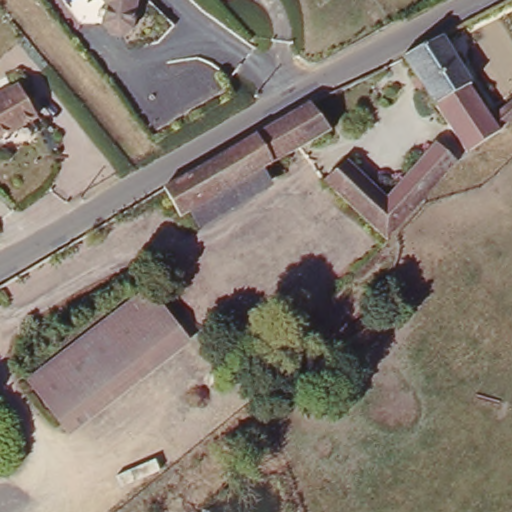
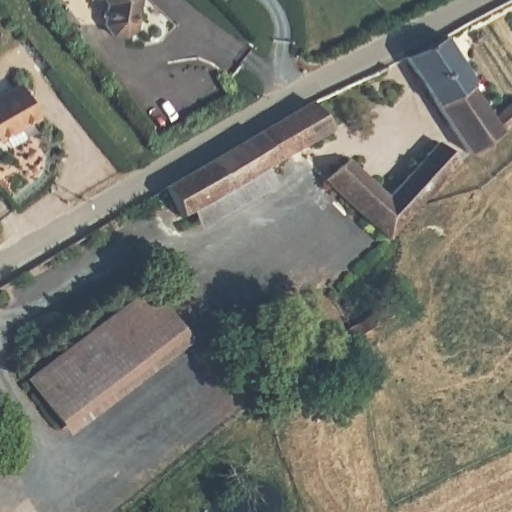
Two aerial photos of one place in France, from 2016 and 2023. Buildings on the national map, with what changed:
unchanged [(125,37),(111,36),(102,25),(105,2),(103,0),(139,0),(134,30),(125,37)]
unchanged [(403,52),(436,35),(498,121),(512,107),(512,123),(509,126),(469,150),(403,52)]
unchanged [(32,120),(0,141),(0,99),(14,90),(32,120)]
unchanged [(332,125),(265,169),(275,185),(199,231),(189,212),(181,218),(164,189),(252,136),(315,99),(332,125)]
unchanged [(319,184),(342,162),(385,197),(440,150),(458,168),(386,240),(319,184)]
unchanged [(149,294),(189,346),(69,438),(30,386),(149,294)]
unchanged [(340,334),(372,303),(390,320),(356,351),(340,334)]

